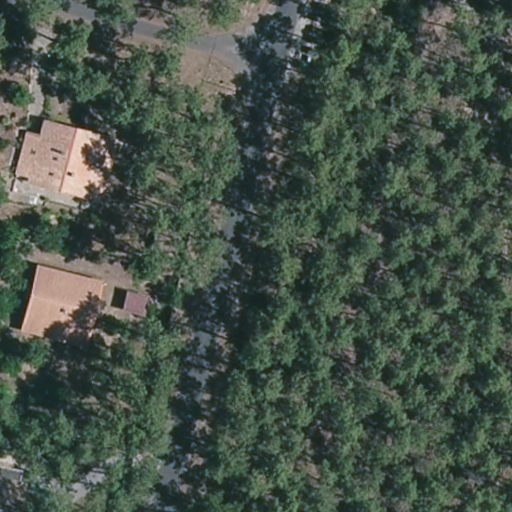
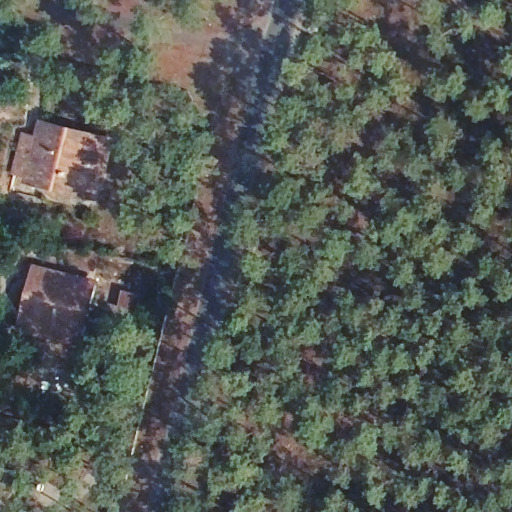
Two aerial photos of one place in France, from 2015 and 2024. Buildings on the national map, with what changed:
unchanged [(54,190),(35,186),(35,184),(20,180),(31,138),(46,142),(48,135),(50,128),(116,145),(109,174),(105,190),(102,203),(54,190)]
unchanged [(21,329),(23,317),(35,270),(97,285),(85,333),(82,344),(21,329)]
unchanged [(8,484),(14,485),(11,512),(0,512),(0,466),(10,469),(8,484)]

